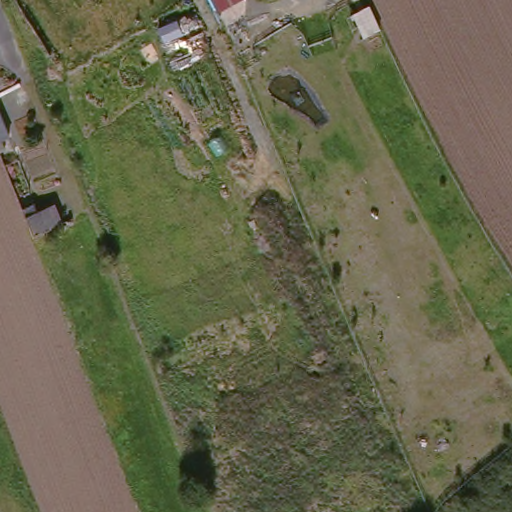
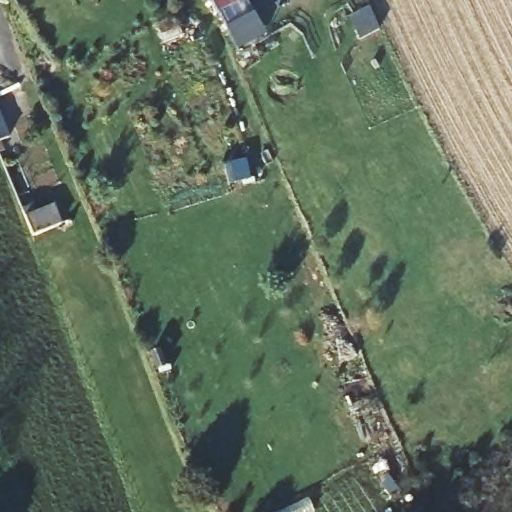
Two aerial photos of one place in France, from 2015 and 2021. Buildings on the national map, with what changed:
unchanged [(215,5),(212,0),(226,0),(215,5)]
unchanged [(33,167),(40,185),(12,197),(2,167),(13,164),(17,173),(33,167)]

